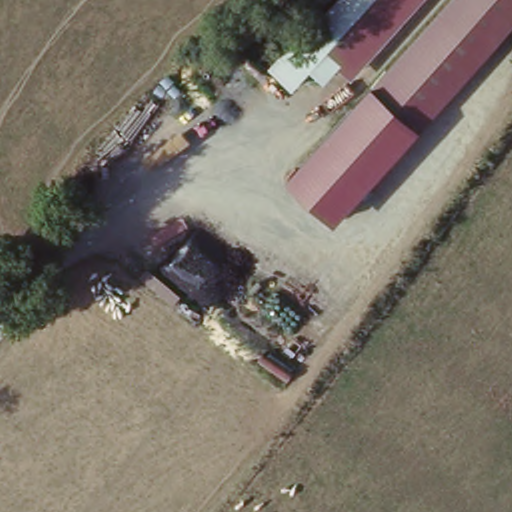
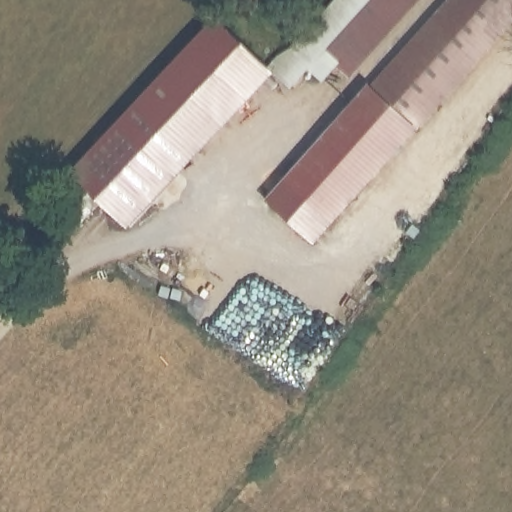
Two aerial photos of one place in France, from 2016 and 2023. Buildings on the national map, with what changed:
unchanged [(422,0),(353,76),(342,66),(326,83),(311,73),(296,90),(270,69),(334,0),(422,0)]
unchanged [(512,0),(512,24),(485,53),(440,15),(453,0),(512,0)]
unchanged [(485,53),(420,128),(333,223),(287,182),(372,86),(440,15),(485,53)]
new [(71,173),(218,19),(274,76),(129,230),(71,173)]
new [(318,245),(269,200),(287,182),(333,223),(318,245)]

